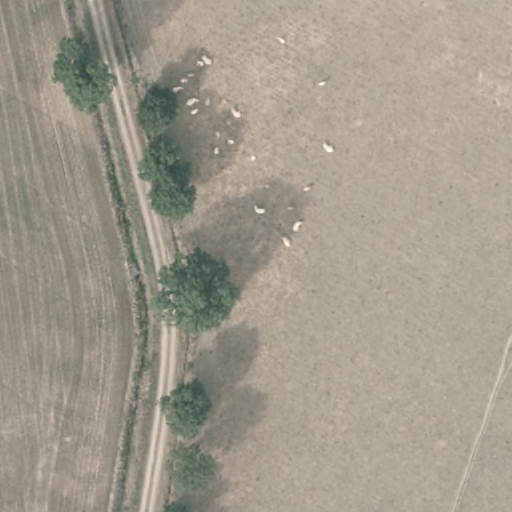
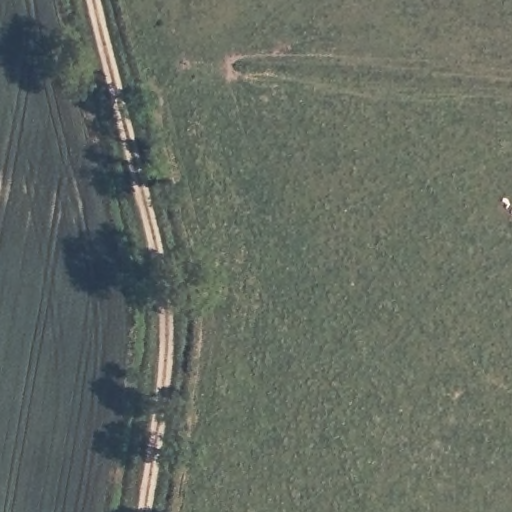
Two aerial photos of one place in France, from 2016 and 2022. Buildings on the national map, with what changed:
[]

